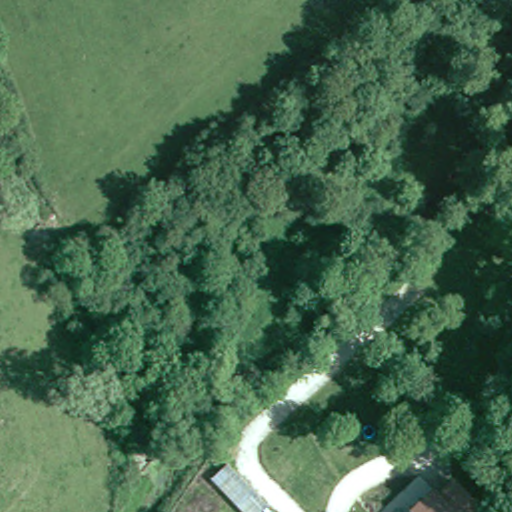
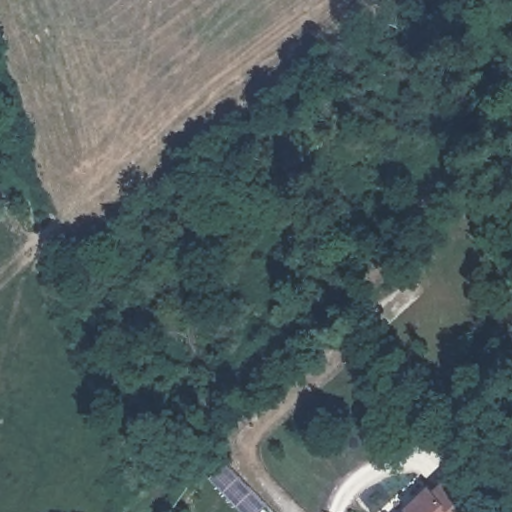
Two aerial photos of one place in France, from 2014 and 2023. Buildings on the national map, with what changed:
unchanged [(445,475),(482,512),(411,512),(409,510),(445,475)]

